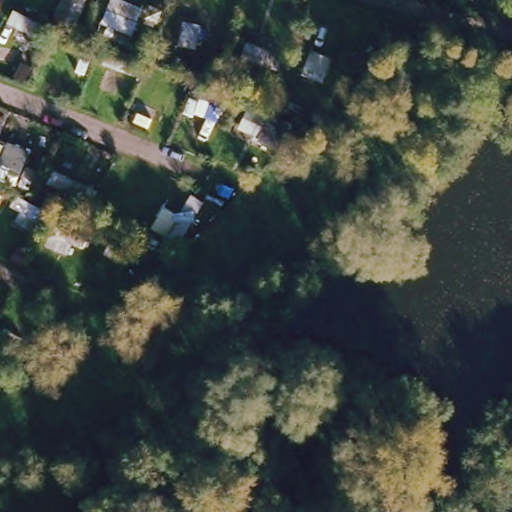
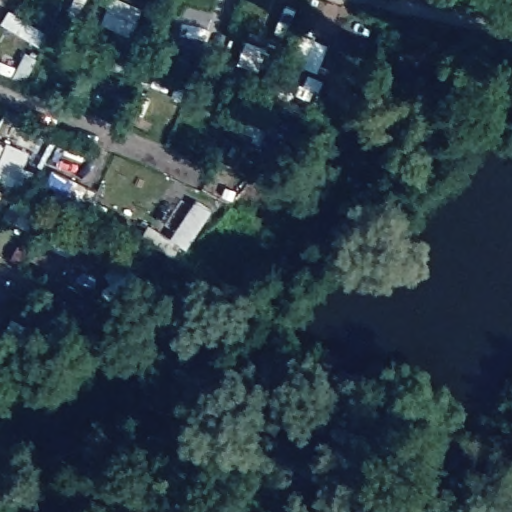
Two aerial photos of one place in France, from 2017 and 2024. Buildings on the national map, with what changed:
unchanged [(420,74),(397,52),(407,42),(418,52),(429,41),(438,49),(427,61),(429,63),(420,74)]

